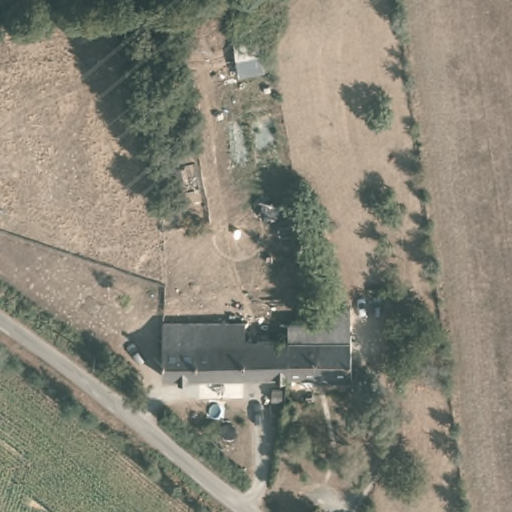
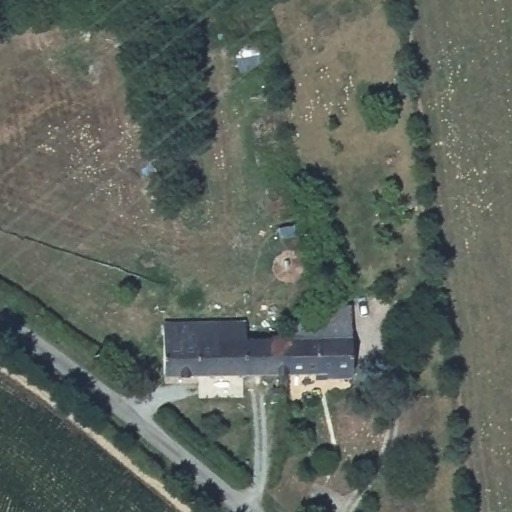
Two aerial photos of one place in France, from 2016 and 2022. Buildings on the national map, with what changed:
unchanged [(295,379),(205,380),(207,328),(254,327),(292,326),(292,302),(326,301),(324,290),(354,288),(355,324),(357,361),(332,361),(332,379),(295,379)]
unchanged [(205,380),(171,381),(176,344),(176,329),(207,328),(205,380)]

